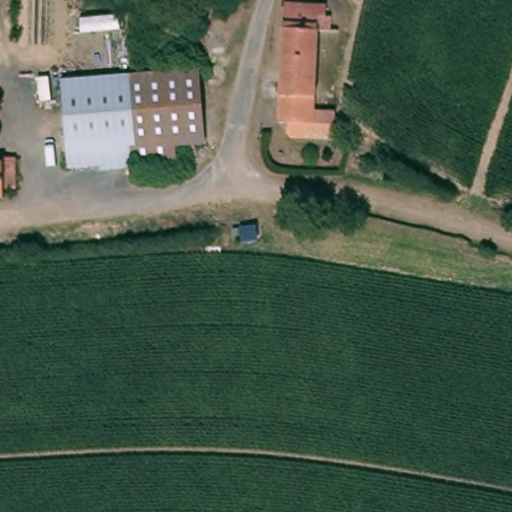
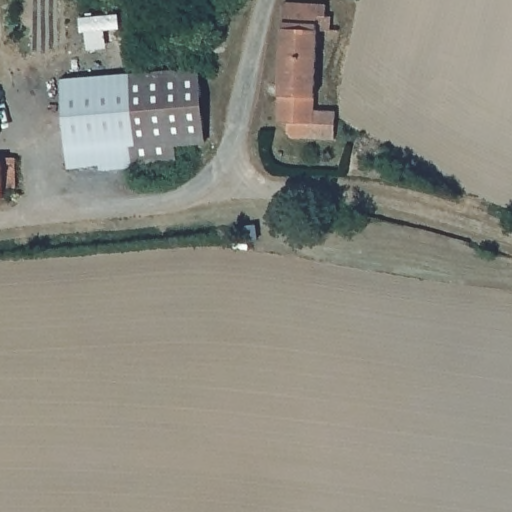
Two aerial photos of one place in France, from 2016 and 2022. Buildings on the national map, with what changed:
unchanged [(332,3),(332,31),(317,30),(317,108),(341,109),(339,133),(272,134),(272,112),(285,112),(289,3),(332,3)]
unchanged [(207,75),(208,139),(177,139),(178,157),(136,157),(134,76),(207,75)]
unchanged [(134,76),(136,157),(65,158),(64,77),(134,76)]
unchanged [(21,160),(21,174),(22,188),(9,189),(10,200),(0,200),(0,161),(21,160)]

